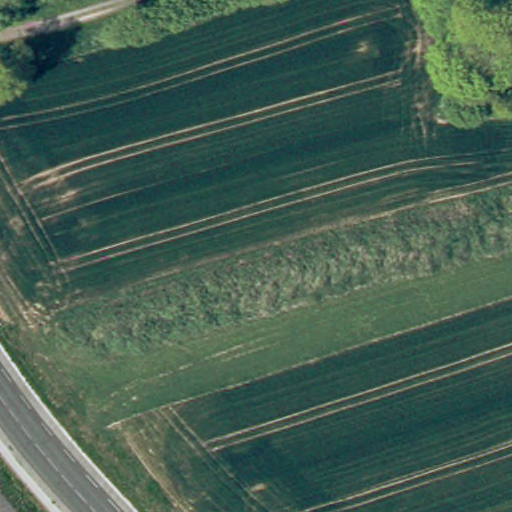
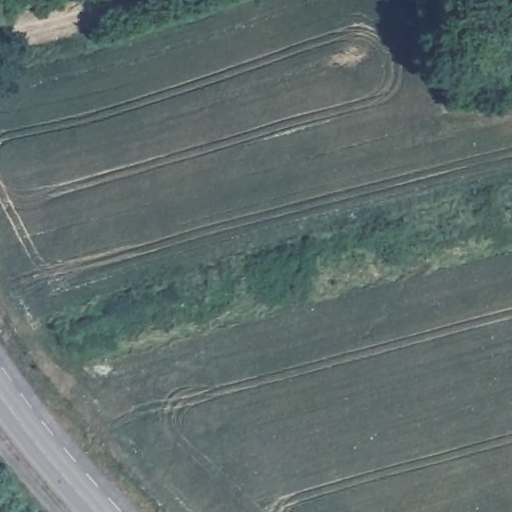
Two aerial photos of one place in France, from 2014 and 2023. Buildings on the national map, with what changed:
unchanged [(507,0),(512,0),(512,13),(507,0)]

